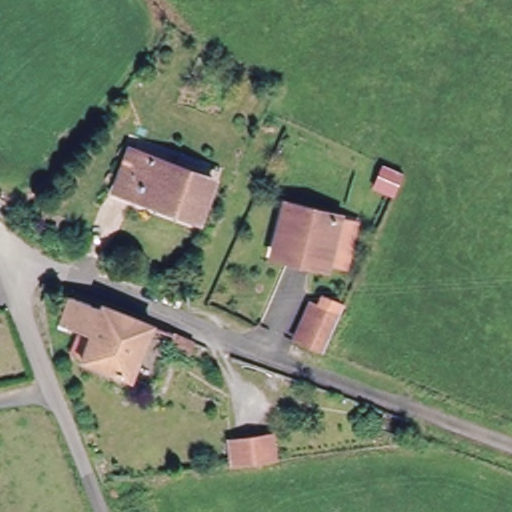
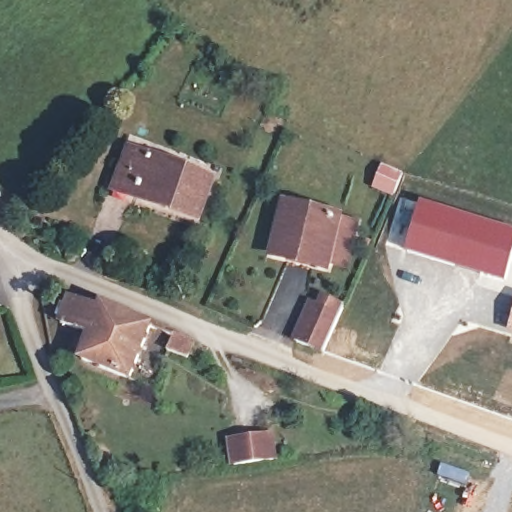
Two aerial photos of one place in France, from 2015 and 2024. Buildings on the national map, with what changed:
unchanged [(159,168),(211,189),(194,227),(114,194),(135,153),(161,164),(159,168)]
unchanged [(401,176),(392,196),(371,186),(379,167),(401,176)]
new [(439,264),(403,250),(386,242),(401,197),(420,202),(512,229),(512,261),(504,284),(439,264)]
unchanged [(338,273),(320,269),(319,273),(265,260),(277,212),(331,225),(348,229),(338,273)]
unchanged [(340,318),(324,357),(293,344),(311,304),(340,318)]
unchanged [(85,340),(76,336),(85,312),(109,323),(112,317),(161,336),(142,390),(85,369),(87,364),(76,359),(85,340)]
new [(512,334),(507,332),(512,316),(512,334)]
unchanged [(175,340),(207,352),(196,363),(170,355),(175,340)]
unchanged [(269,433),(274,461),(232,467),(228,441),(269,433)]

